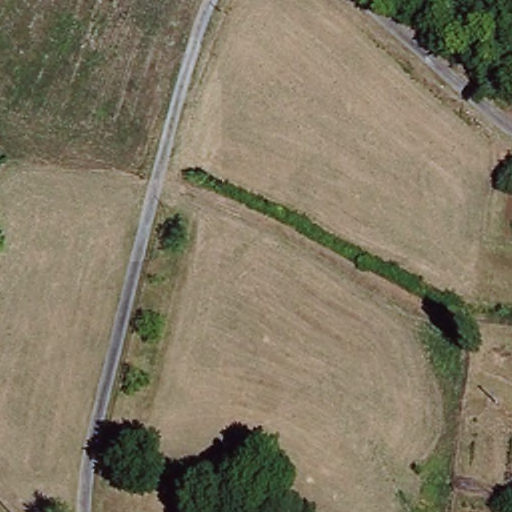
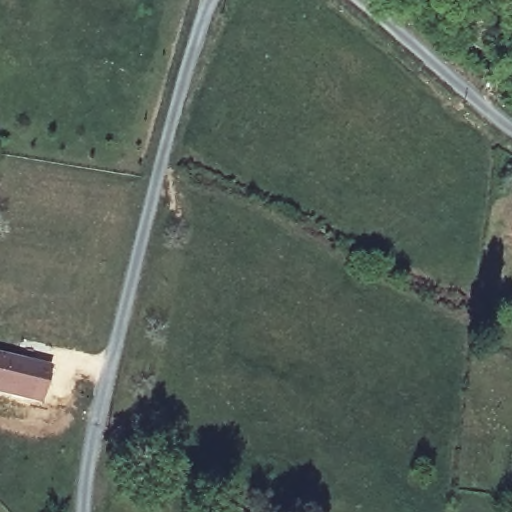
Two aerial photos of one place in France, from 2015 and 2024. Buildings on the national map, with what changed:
new [(42,400),(0,391),(0,354),(50,366),(42,400)]

